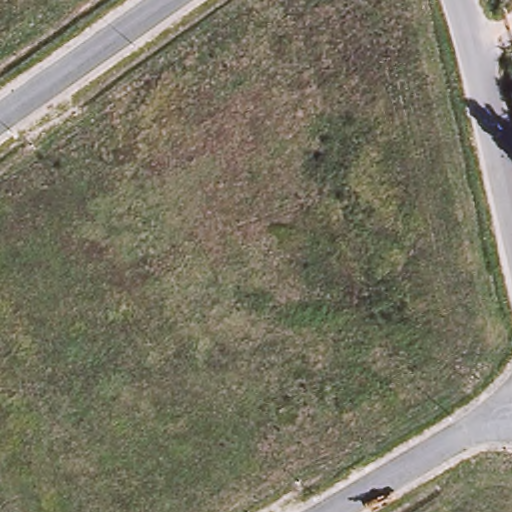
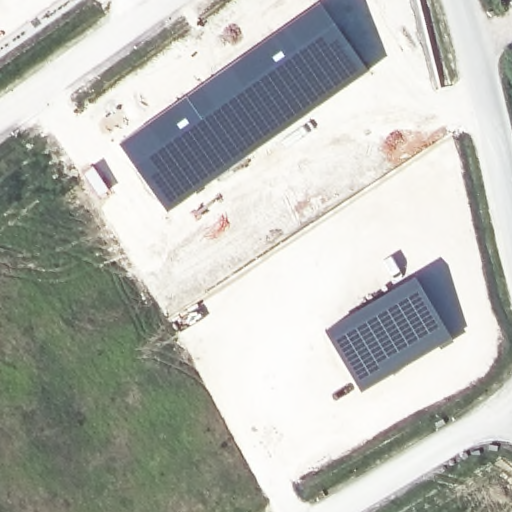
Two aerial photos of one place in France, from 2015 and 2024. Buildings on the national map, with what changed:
new [(260,42),(321,0),(369,69),(233,166),(166,211),(119,142),(260,42)]
new [(416,274),(454,338),(360,392),(324,329),(416,274)]

